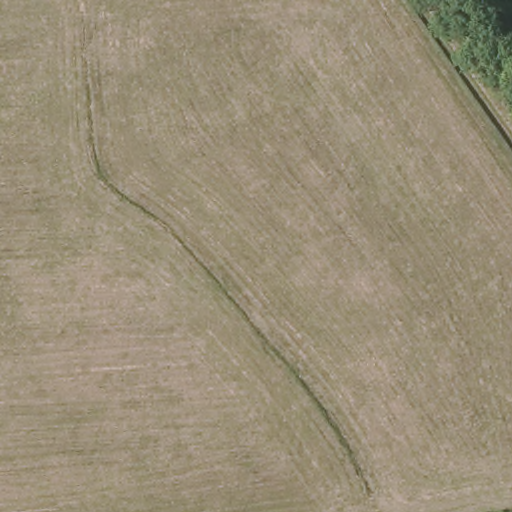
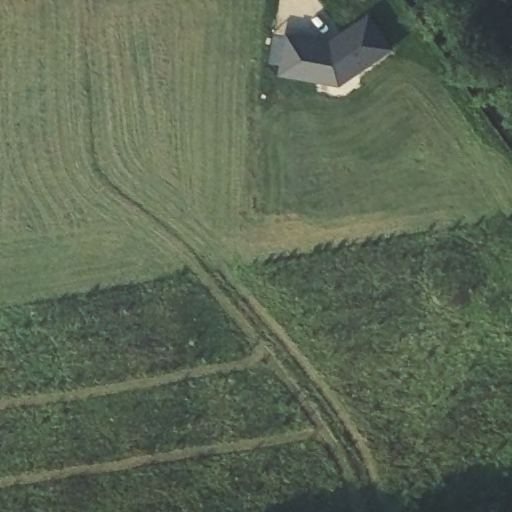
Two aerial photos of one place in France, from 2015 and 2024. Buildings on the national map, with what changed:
new [(393,48),(340,85),(279,74),(282,63),(270,60),(278,30),(330,40),(370,11),(393,48)]

